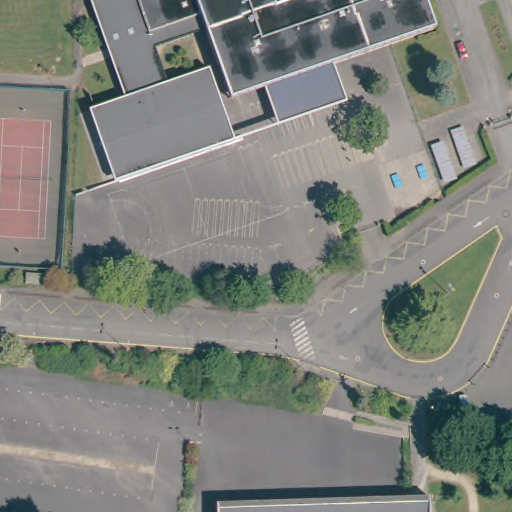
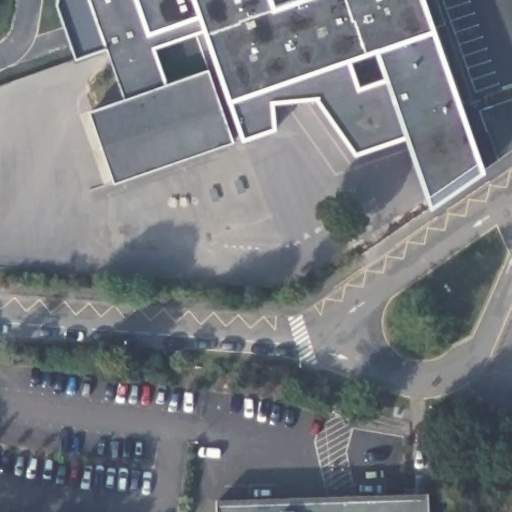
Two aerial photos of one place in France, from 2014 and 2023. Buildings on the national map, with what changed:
unchanged [(166,83),(208,70),(233,141),(115,179),(92,107),(122,97),(110,60),(90,0),(423,0),(433,30),(331,64),(262,88),(228,100),(206,31),(154,50),(166,83)]
new [(248,93),(262,88),(331,64),(374,50),(433,30),(482,169),(432,203),(406,135),(355,150),(316,97),(271,102),(272,128),(242,138),(228,100),(248,93)]
demolished [(26,279),(26,272),(44,273),(44,284),(26,282),(26,279)]
unchanged [(289,512),(291,497),(426,494),(427,512),(289,512)]
unchanged [(291,497),(289,512),(215,512),(214,500),(291,497)]

